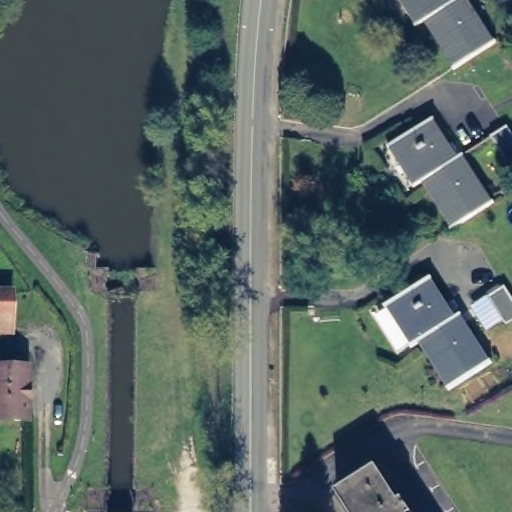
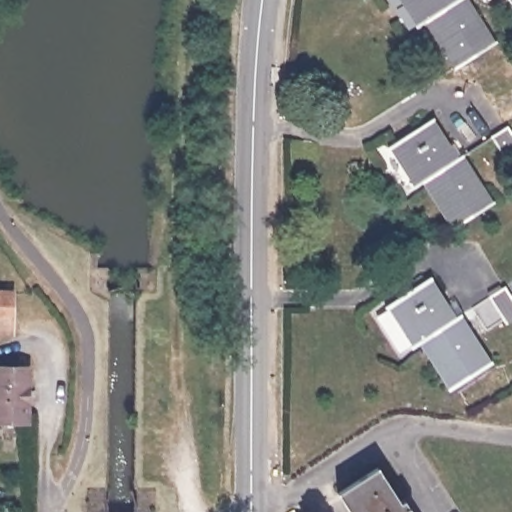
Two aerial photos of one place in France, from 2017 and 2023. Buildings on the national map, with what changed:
unchanged [(454,67),(425,21),(416,26),(399,0),(473,0),(498,40),(454,67)]
unchanged [(510,0),(512,0),(512,2),(511,2),(510,0)]
unchanged [(494,199),(450,228),(419,181),(413,185),(388,146),(439,112),(494,199)]
unchanged [(508,125),(512,131),(512,160),(509,162),(492,135),(508,125)]
unchanged [(494,358),(449,388),(419,342),(412,346),(385,305),(437,271),(494,358)]
unchanged [(12,276),(12,282),(6,283),(5,276),(12,276)]
unchanged [(512,296),(512,319),(509,321),(489,294),(504,284),(512,296)]
unchanged [(8,330),(0,330),(0,291),(9,291),(8,330)]
unchanged [(29,414),(0,413),(0,362),(31,362),(29,414)]
unchanged [(335,492),(379,465),(409,512),(348,512),(335,492)]

